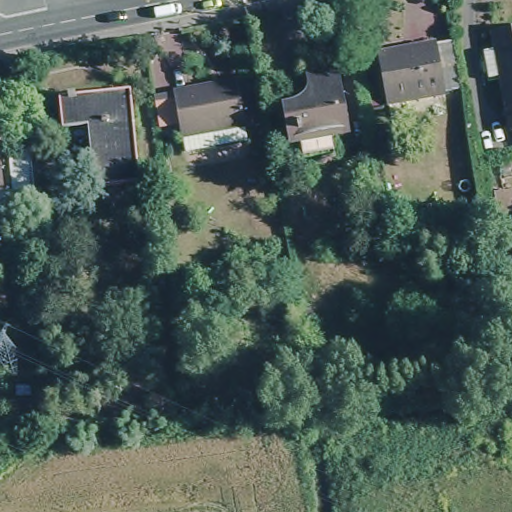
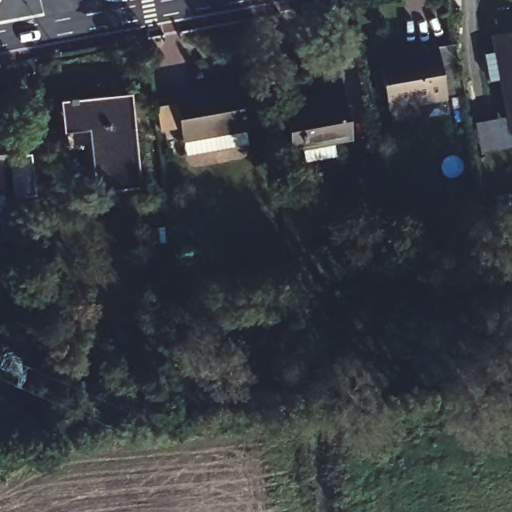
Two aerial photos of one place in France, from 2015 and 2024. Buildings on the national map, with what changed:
unchanged [(506,74),(494,77),(489,50),(501,47),(498,32),(512,29),(512,105),(506,74)]
unchanged [(461,92),(444,95),(444,97),(388,107),(379,56),(453,44),(461,92)]
unchanged [(331,135),(334,150),(303,156),(301,140),(291,142),(286,110),(307,107),(312,98),(309,84),(306,72),(336,66),(339,79),(348,132),(331,135)]
unchanged [(183,140),(181,127),(160,131),(155,101),(175,97),(174,96),(238,85),(248,142),(216,149),(185,155),(183,140)]
unchanged [(96,190),(91,127),(63,129),(60,101),(108,97),(131,95),(131,98),(139,186),(96,190)]
unchanged [(24,160),(30,159),(34,201),(29,202),(13,204),(8,162),(20,161),(24,160)]
unchanged [(0,194),(0,169),(3,194),(0,194)]
unchanged [(511,194),(512,202),(512,215),(498,217),(494,197),(511,194)]
unchanged [(512,284),(512,316),(504,317),(499,287),(512,284)]

